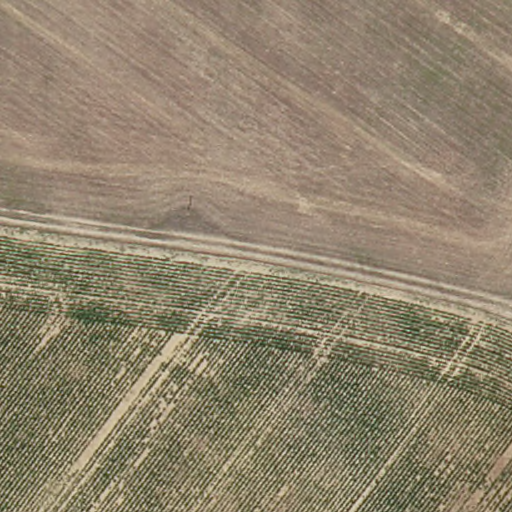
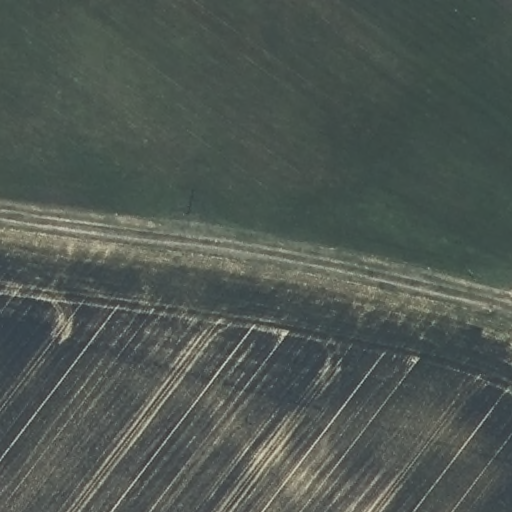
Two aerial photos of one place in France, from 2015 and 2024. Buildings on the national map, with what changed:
[]

